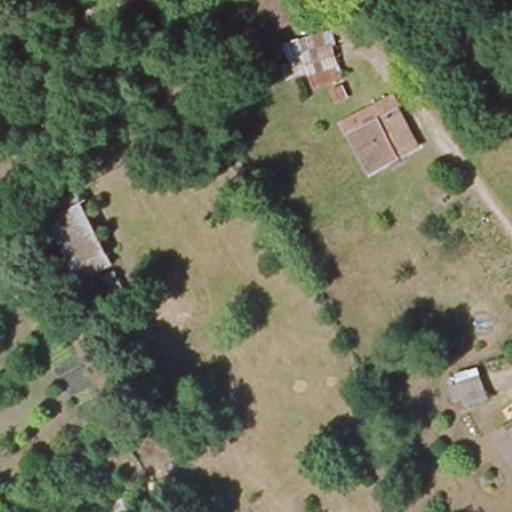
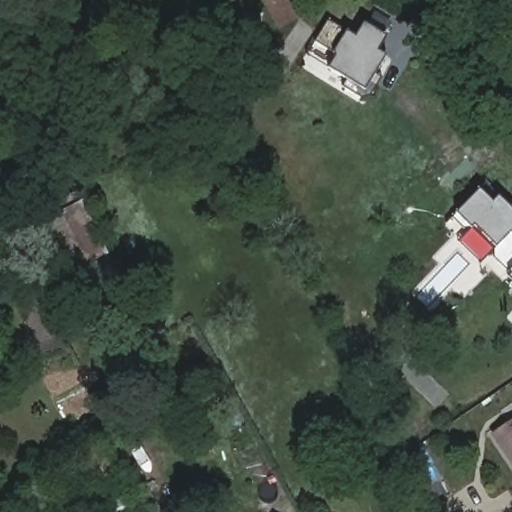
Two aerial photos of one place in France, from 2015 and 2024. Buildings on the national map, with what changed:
demolished [(282,17),(273,0),(298,0),(301,6),(282,17)]
new [(330,20),(347,31),(357,36),(366,22),(387,36),(378,50),(387,55),(376,74),(382,77),(372,95),(363,97),(343,86),(347,79),(330,67),(337,57),(336,51),(317,41),(330,20)]
demolished [(398,109),(417,146),(370,170),(351,132),(398,109)]
new [(509,271),(496,257),(495,247),(475,227),(472,230),(463,229),(452,217),(457,212),(480,189),(493,202),(500,196),(512,207),(512,274),(509,271)]
unchanged [(84,203),(107,254),(77,268),(52,218),(84,203)]
unchanged [(105,277),(116,271),(137,317),(126,322),(105,277)]
new [(509,277),(512,275),(512,280),(509,277)]
unchanged [(492,435),(504,427),(512,422),(512,465),(492,435)]
unchanged [(129,499),(135,510),(131,512),(110,512),(109,511),(129,499)]

